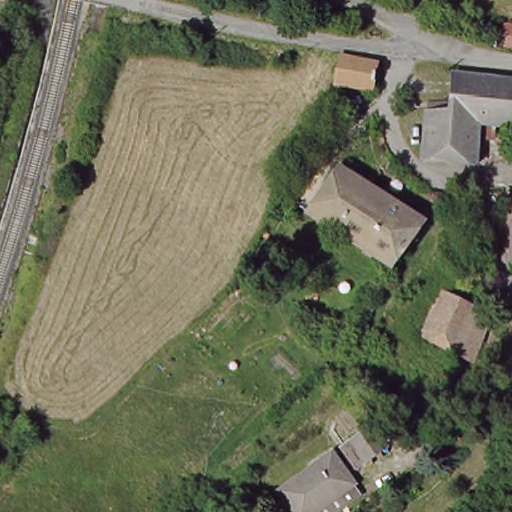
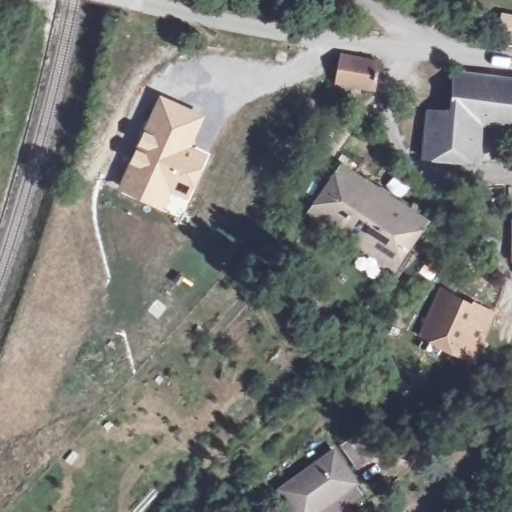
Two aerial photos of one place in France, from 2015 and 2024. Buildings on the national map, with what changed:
unchanged [(512,54),(510,54),(512,38),(512,54)]
unchanged [(346,60),(379,65),(373,98),(339,94),(346,60)]
unchanged [(429,165),(427,165),(431,118),(453,119),(457,77),(503,82),(512,84),(512,132),(486,130),(483,169),(445,166),(429,165)]
new [(170,192),(163,209),(123,190),(163,102),(202,119),(192,146),(209,154),(188,199),(170,192)]
unchanged [(400,274),(326,228),(316,220),(346,176),(430,228),(400,274)]
unchanged [(500,318),(488,366),(433,341),(453,300),(500,318)]
unchanged [(375,424),(388,449),(367,459),(354,435),(375,424)]
unchanged [(352,484),(318,512),(293,512),(277,492),(326,454),(352,484)]

